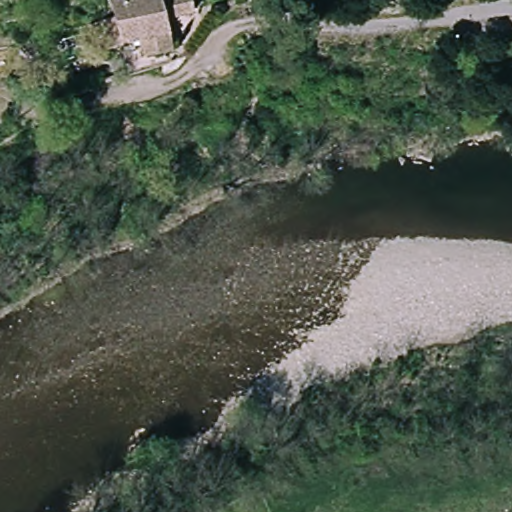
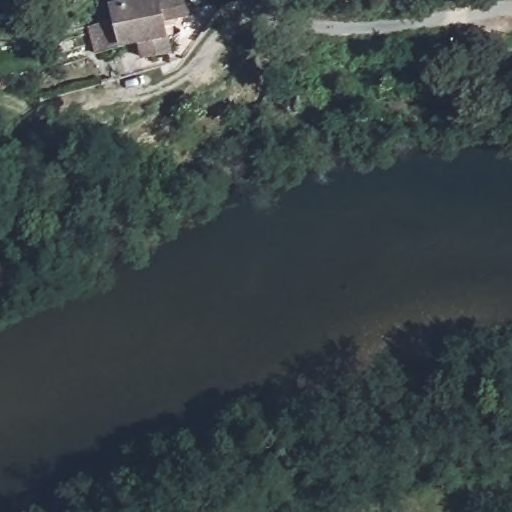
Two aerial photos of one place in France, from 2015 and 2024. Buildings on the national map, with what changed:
unchanged [(114,24),(110,3),(126,0),(161,0),(161,4),(182,0),(189,0),(193,19),(166,24),(173,59),(151,64),(148,47),(121,52),(96,56),(91,27),(114,24)]

